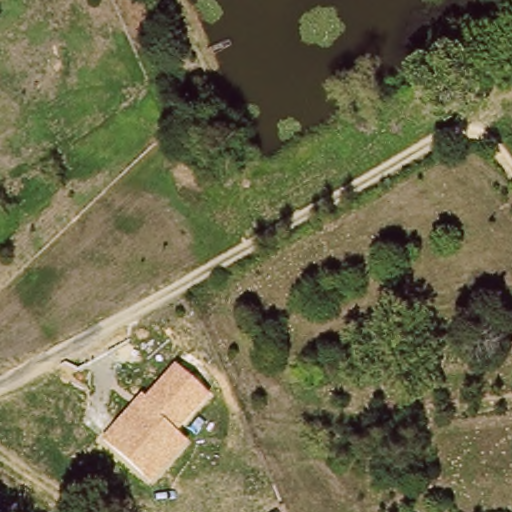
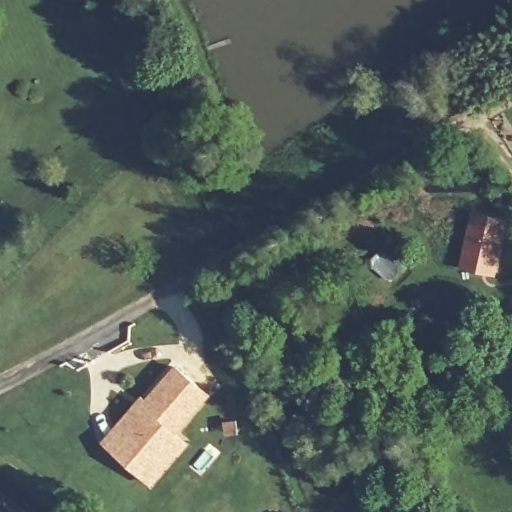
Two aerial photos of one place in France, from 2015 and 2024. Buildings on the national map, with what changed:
new [(471,212),(507,220),(497,277),(458,268),(471,212)]
unchanged [(152,485),(103,443),(141,396),(144,399),(173,364),(210,396),(177,434),(188,443),(152,485)]

